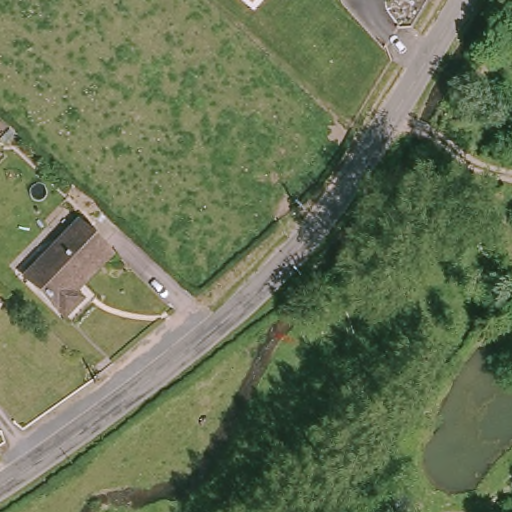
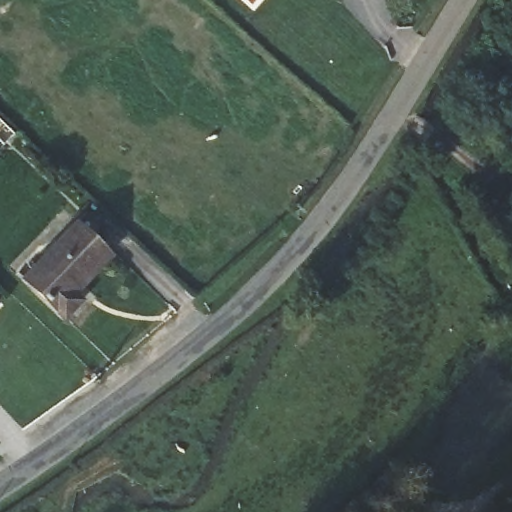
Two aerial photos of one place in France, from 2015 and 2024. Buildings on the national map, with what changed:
unchanged [(242,0),(256,0),(250,7),(242,0)]
unchanged [(110,260),(78,296),(88,305),(73,322),(31,282),(78,229),(110,260)]
unchanged [(3,310),(0,313),(0,306),(3,310)]

